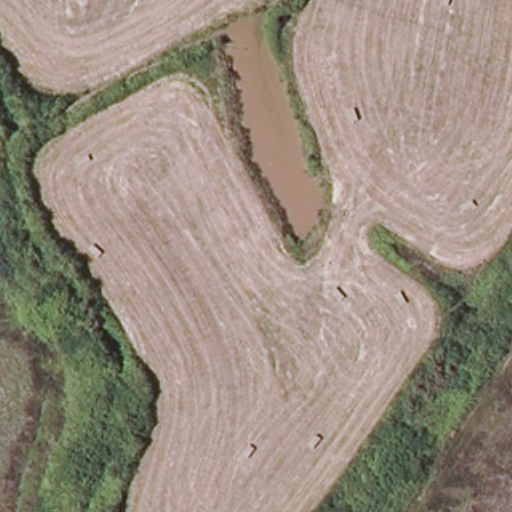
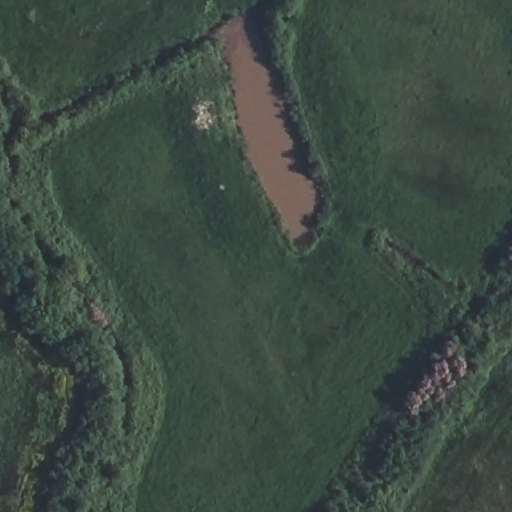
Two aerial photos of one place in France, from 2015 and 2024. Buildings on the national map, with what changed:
[]

